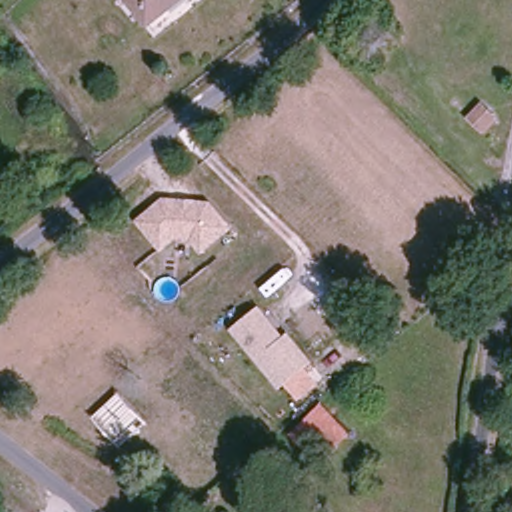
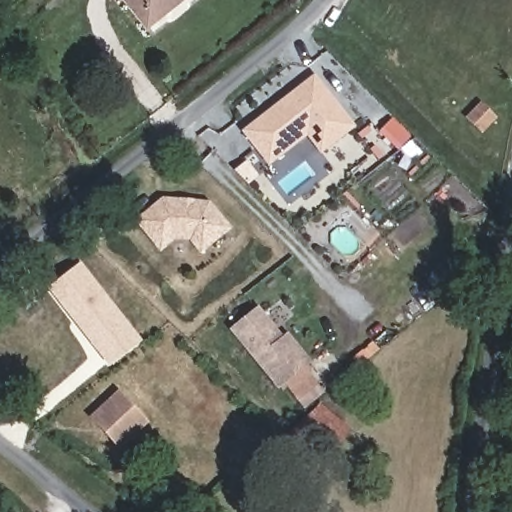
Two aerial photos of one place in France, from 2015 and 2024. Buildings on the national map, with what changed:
unchanged [(175,0),(150,24),(129,0),(175,0)]
new [(263,150),(248,130),(277,107),(287,100),(318,76),(356,127),(324,151),(310,133),(299,141),(272,162),(263,150)]
unchanged [(492,115),(482,126),(469,116),(482,104),(492,115)]
unchanged [(201,254),(190,240),(175,239),(161,251),(136,221),(164,198),(211,201),(233,228),(201,254)]
new [(48,287),(81,262),(143,341),(108,367),(48,287)]
unchanged [(299,401),(285,385),(279,390),(229,328),(259,305),(283,335),(288,331),(312,361),(305,367),(320,383),(299,401)]
unchanged [(121,447),(93,417),(119,393),(147,423),(121,447)]
unchanged [(319,464),(291,433),(319,403),(349,430),(319,464)]

